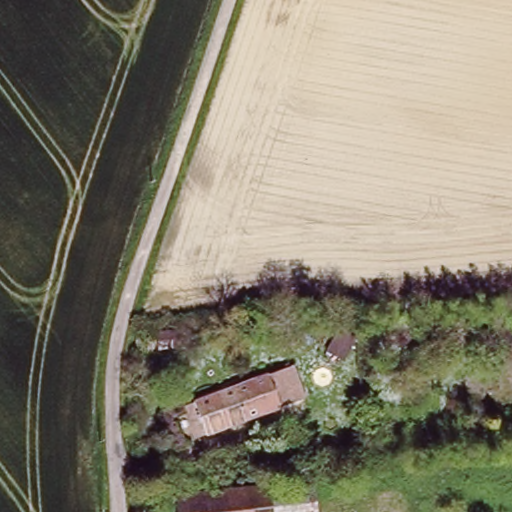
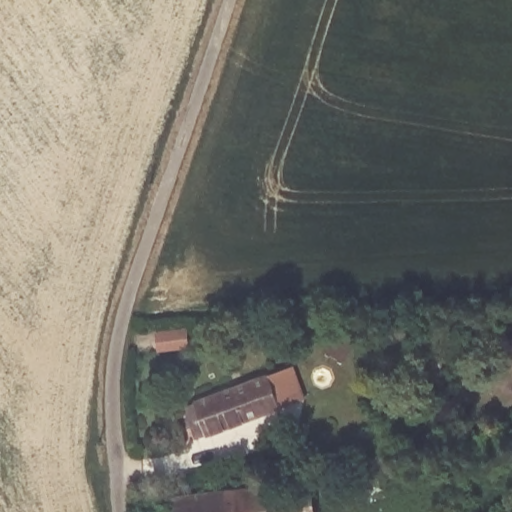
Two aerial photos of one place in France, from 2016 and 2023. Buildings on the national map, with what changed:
unchanged [(192,403),(266,373),(267,375),(287,365),(300,399),(280,406),(205,435),(194,440),(182,410),(194,406),(192,403)]
unchanged [(315,480),(319,512),(277,512),(274,485),(315,480)]
unchanged [(169,500),(274,485),(277,512),(171,512),(169,500)]

